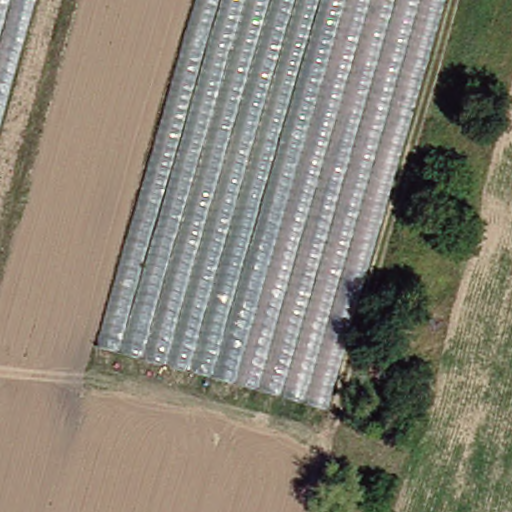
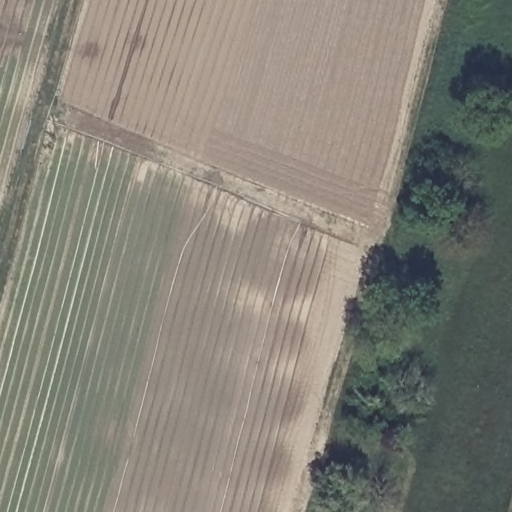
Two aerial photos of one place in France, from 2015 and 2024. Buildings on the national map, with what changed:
demolished [(0,0),(65,0),(0,234),(0,0)]
demolished [(101,342),(199,0),(328,0),(222,372),(101,342)]
demolished [(328,0),(446,0),(331,403),(222,372),(328,0)]

